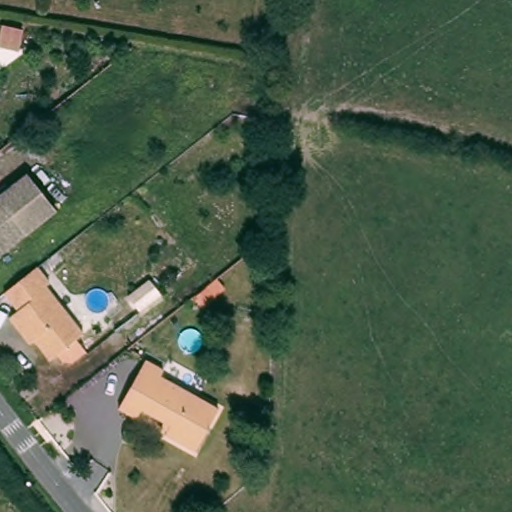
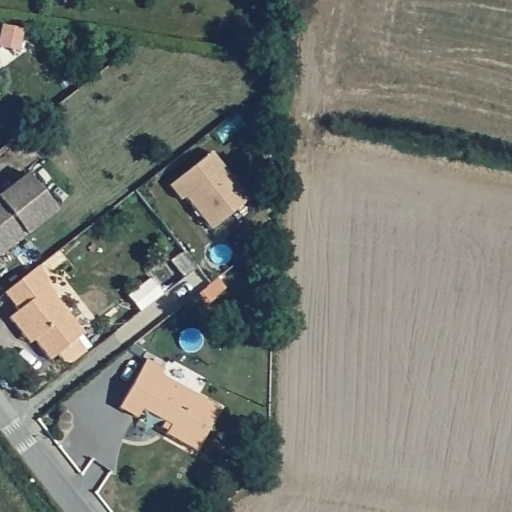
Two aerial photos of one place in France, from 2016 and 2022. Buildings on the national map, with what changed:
unchanged [(0,45),(0,34),(3,25),(22,30),(18,49),(0,45)]
new [(211,153),(248,200),(210,230),(185,197),(181,201),(169,186),(211,153)]
unchanged [(0,199),(32,174),(61,211),(0,259),(0,199)]
unchanged [(25,338),(9,317),(19,311),(4,293),(9,290),(28,275),(38,267),(49,282),(46,286),(84,333),(76,339),(85,351),(71,362),(63,362),(58,354),(50,360),(34,340),(29,343),(25,338)]
unchanged [(144,314),(133,300),(153,285),(163,298),(144,314)]
unchanged [(222,308),(212,317),(203,307),(214,298),(222,308)]
unchanged [(164,422),(141,409),(136,418),(119,408),(146,360),(163,370),(160,376),(219,408),(195,451),(166,435),(169,432),(161,427),(164,422)]

